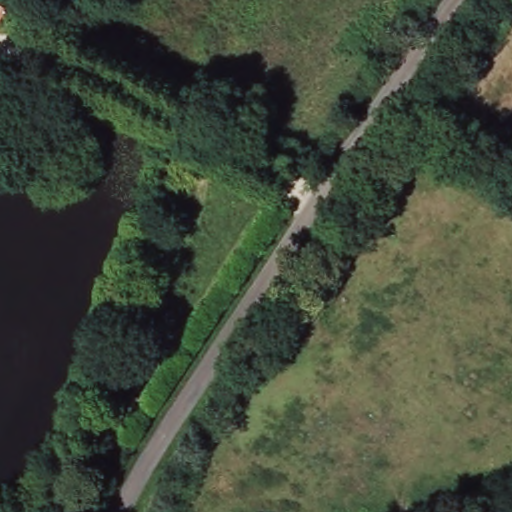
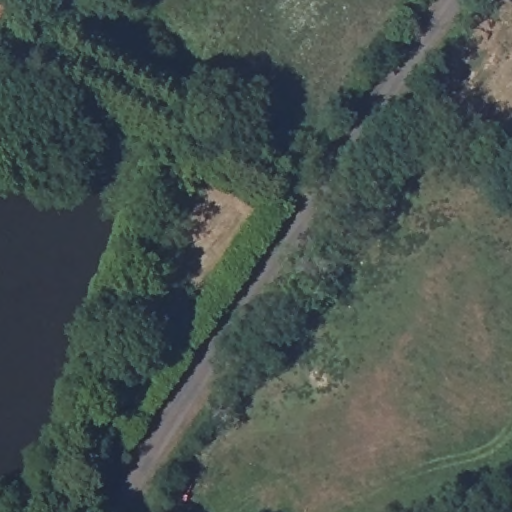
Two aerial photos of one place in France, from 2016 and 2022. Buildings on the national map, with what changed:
unchanged [(0,7),(0,1),(3,4),(0,7)]

